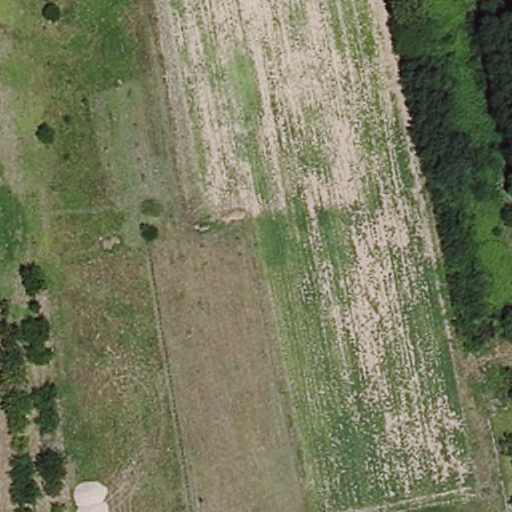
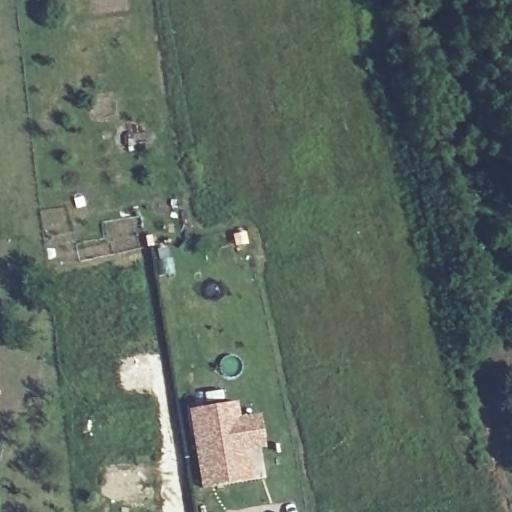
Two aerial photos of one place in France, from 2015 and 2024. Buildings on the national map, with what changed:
new [(197,473),(185,409),(229,402),(233,418),(252,415),(258,444),(238,448),(241,464),(246,463),(248,479),(214,486),(199,488),(197,473)]

